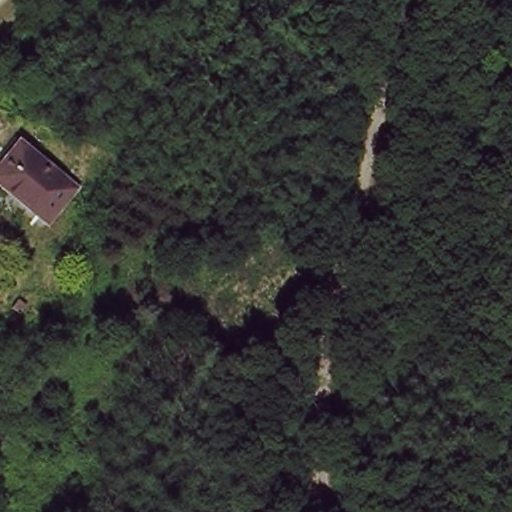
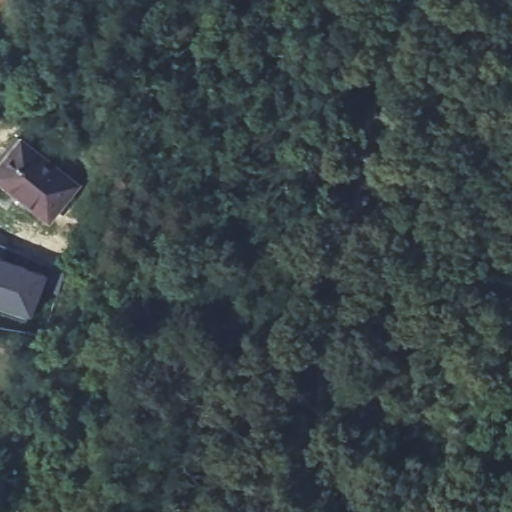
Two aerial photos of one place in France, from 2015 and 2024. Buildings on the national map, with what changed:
unchanged [(81,185),(51,222),(0,180),(0,166),(23,139),(81,185)]
new [(30,319),(0,309),(0,255),(48,274),(30,319)]

